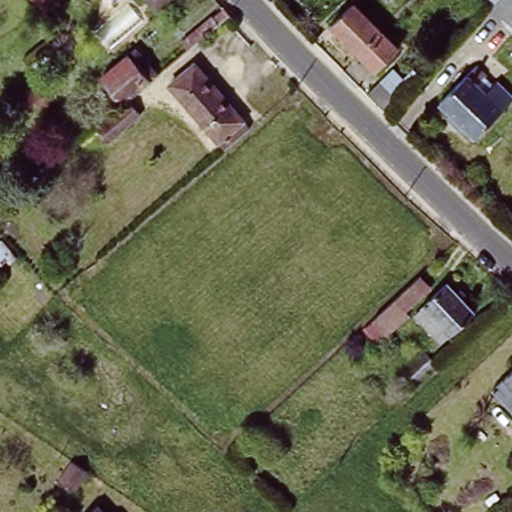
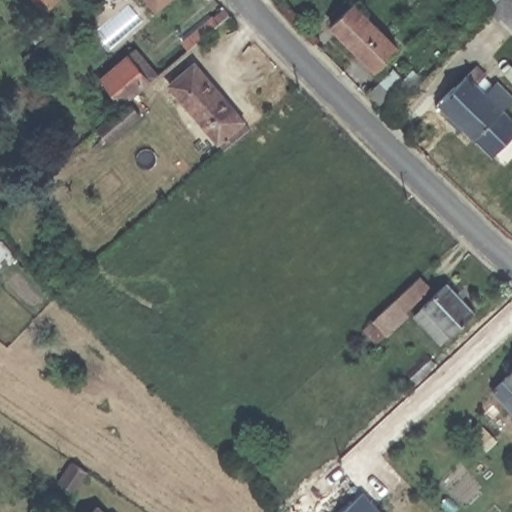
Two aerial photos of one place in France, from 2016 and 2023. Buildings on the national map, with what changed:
unchanged [(60,0),(44,14),(31,0),(59,0),(60,0)]
unchanged [(168,0),(154,11),(152,10),(145,0),(168,0)]
unchanged [(509,0),(512,0),(512,21),(507,27),(494,15),(509,0)]
unchanged [(212,22),(225,10),(230,16),(217,28),(190,51),(184,43),(210,20),(212,22)]
unchanged [(397,58),(376,78),(332,32),(353,12),(397,58)]
unchanged [(97,83),(130,55),(151,80),(122,105),(135,119),(102,147),(90,133),(119,108),(97,83)]
unchanged [(245,121),(220,142),(172,85),(186,74),(199,63),(235,108),(245,121)]
unchanged [(477,71),(487,82),(485,84),(495,93),(499,88),(512,101),(512,108),(474,145),(438,108),(477,71)]
unchanged [(398,100),(387,110),(369,91),(380,81),(398,100)]
unchanged [(425,272),(435,283),(409,308),(412,312),(392,331),(377,316),(425,272)]
unchanged [(452,279),(480,308),(446,340),(417,310),(452,279)]
unchanged [(425,354),(437,366),(417,384),(405,372),(425,354)]
unchanged [(512,377),(512,408),(497,392),(512,377)]
unchanged [(70,464),(82,473),(69,493),(55,483),(70,464)]
new [(383,512),(345,512),(365,494),(383,512)]
unchanged [(101,512),(94,512),(97,509),(101,512)]

